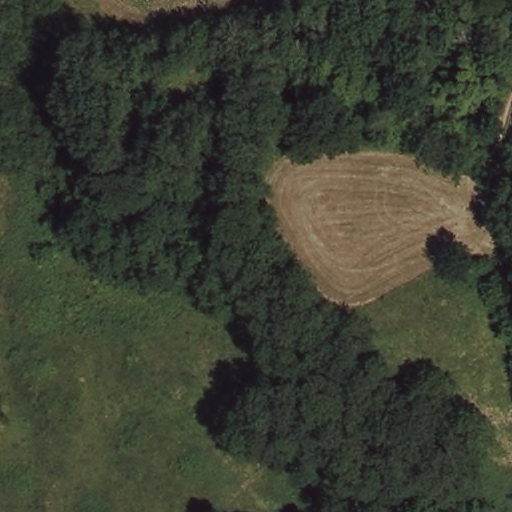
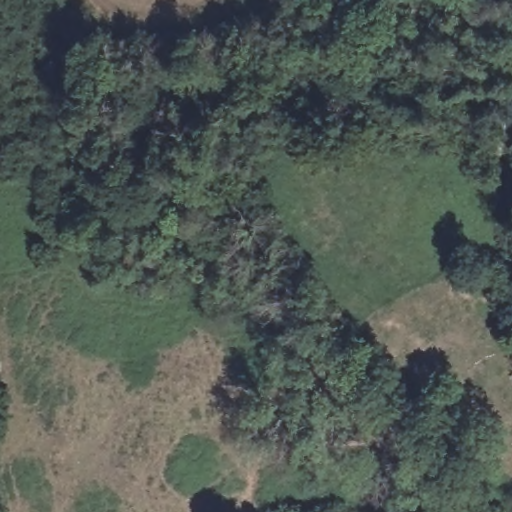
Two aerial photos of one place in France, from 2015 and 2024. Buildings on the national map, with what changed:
[]

